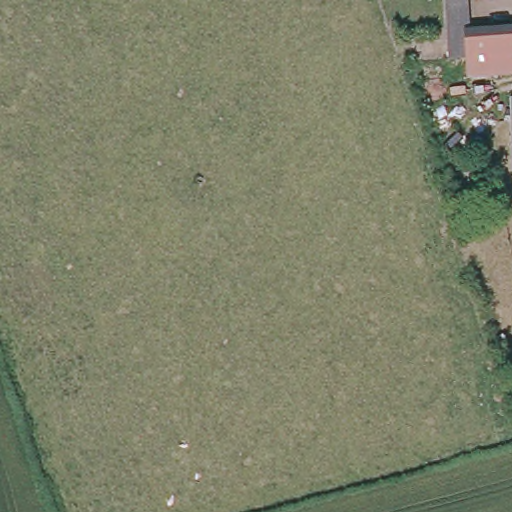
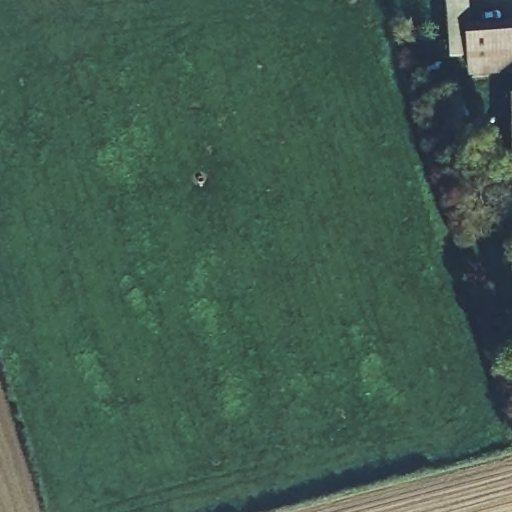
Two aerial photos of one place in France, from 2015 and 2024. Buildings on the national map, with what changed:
unchanged [(467,28),(512,25),(512,50),(449,54),(444,0),(465,0),(467,28)]
unchanged [(449,54),(512,50),(512,74),(472,76),(470,60),(449,62),(449,54)]

